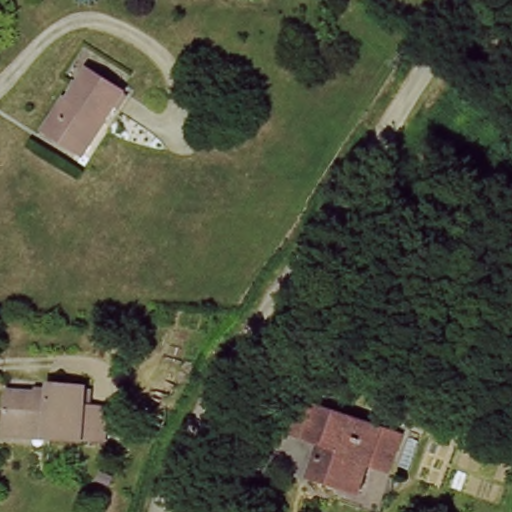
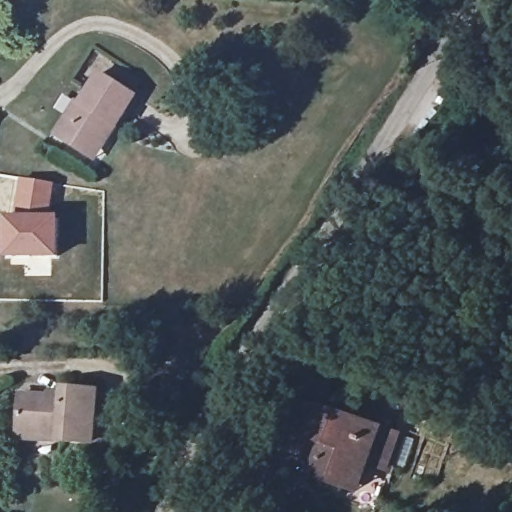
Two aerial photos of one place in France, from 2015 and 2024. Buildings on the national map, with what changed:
unchanged [(92,158),(51,143),(66,106),(74,109),(89,74),(129,92),(116,123),(100,161),(92,158)]
new [(18,177),(54,182),(52,214),(16,214),(18,177)]
new [(4,217),(16,216),(16,214),(52,214),(60,215),(60,260),(4,260),(4,217)]
unchanged [(18,434),(21,399),(65,401),(66,393),(97,396),(97,410),(120,412),(117,445),(94,443),(93,447),(57,444),(17,441),(18,434)]
unchanged [(319,478),(326,445),(314,441),(298,435),(305,404),(321,408),(384,422),(405,427),(395,464),(374,459),(371,476),(368,490),(341,483),(319,478)]

